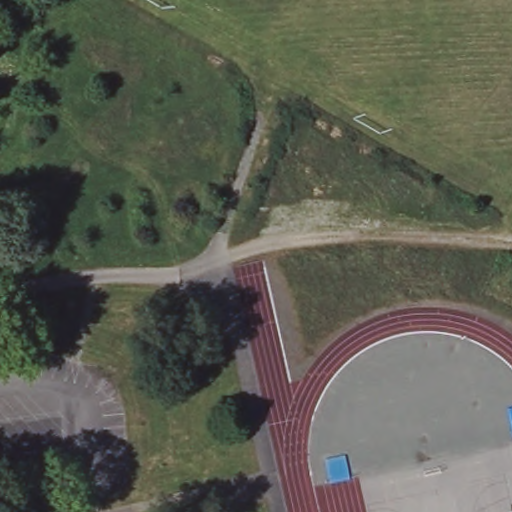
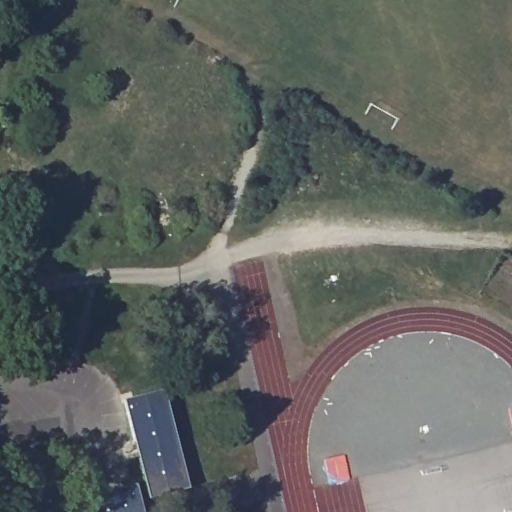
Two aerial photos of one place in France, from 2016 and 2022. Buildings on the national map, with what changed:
new [(148,498),(123,400),(162,390),(187,489),(148,498)]
new [(85,498),(135,485),(141,512),(89,512),(85,498)]

